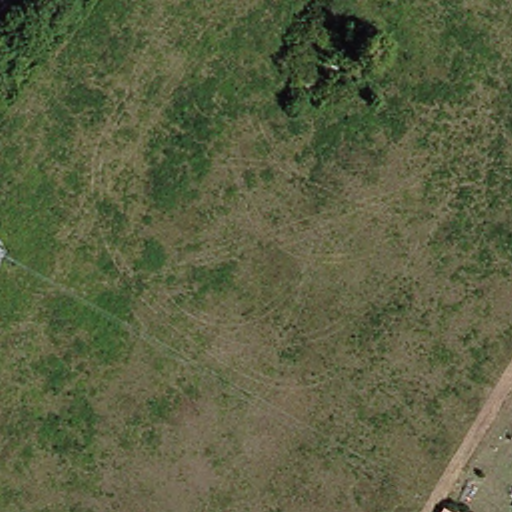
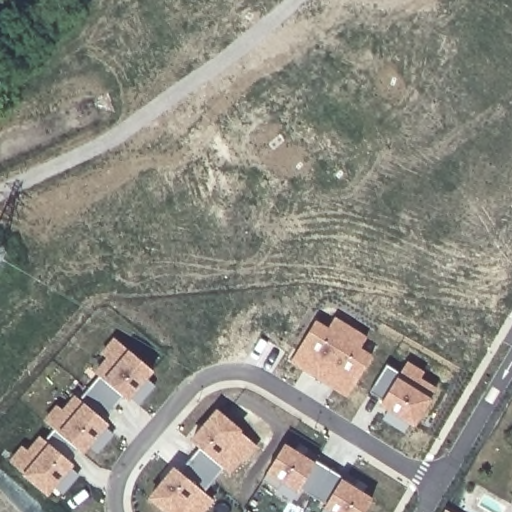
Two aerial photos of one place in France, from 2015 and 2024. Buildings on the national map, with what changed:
new [(362,348),(373,356),(345,398),(290,362),(316,321),(329,329),(336,317),(368,338),(362,348)]
new [(129,401),(95,371),(105,358),(100,353),(114,336),(155,370),(129,401)]
new [(421,378),(436,388),(432,398),(435,400),(419,427),(381,405),(407,362),(425,372),(421,378)]
new [(85,453),(45,419),(58,405),(63,408),(75,395),(109,425),(85,453)]
new [(230,473),(191,441),(218,408),(245,430),(243,434),(253,442),(230,473)]
new [(76,465),(50,494),(10,460),(24,443),(30,447),(41,433),(76,465)]
new [(300,490),(270,473),(286,443),(316,462),(300,490)]
new [(208,512),(164,512),(149,498),(176,467),(216,502),(208,512)]
new [(332,512),(325,507),(343,477),(375,497),(365,512),(332,512)]
unchanged [(446,512),(446,511),(447,512),(446,512)]

